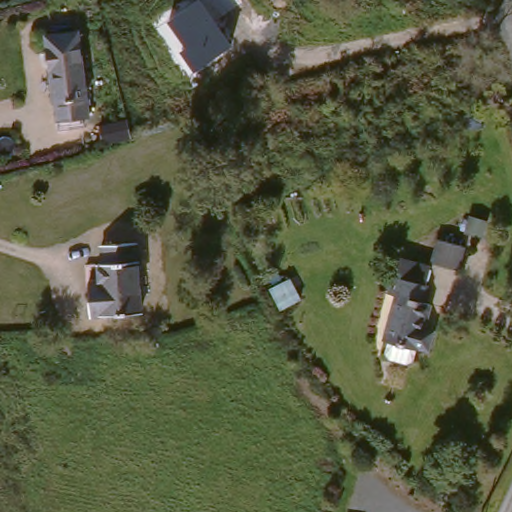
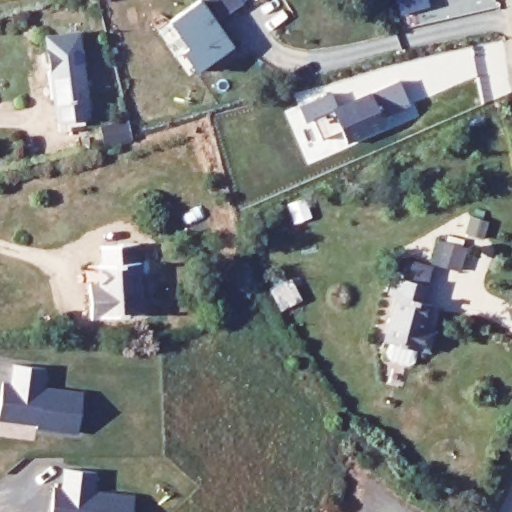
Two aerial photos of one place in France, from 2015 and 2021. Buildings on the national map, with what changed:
new [(400,13),(396,0),(425,0),(426,4),(400,13)]
unchanged [(195,70),(180,49),(187,45),(170,20),(202,1),(233,43),(195,70)]
unchanged [(84,121),(54,124),(46,41),(75,37),(84,121)]
new [(332,96),(339,110),(401,83),(411,107),(383,119),(387,129),(348,146),(344,134),(324,143),(315,122),(308,125),(302,110),(332,96)]
unchanged [(91,320),(89,296),(96,296),(94,271),(102,270),(102,264),(100,249),(137,245),(139,261),(143,317),(91,320)]
unchanged [(428,271),(435,246),(464,255),(457,279),(435,274),(425,329),(440,334),(432,359),(419,355),(418,374),(387,378),(382,344),(400,264),(428,271)]
new [(37,428),(37,423),(0,417),(0,378),(7,379),(10,361),(44,367),(41,385),(80,390),(77,433),(37,428)]
new [(130,512),(47,512),(50,484),(59,485),(62,464),(95,468),(92,488),(132,492),(130,512)]

